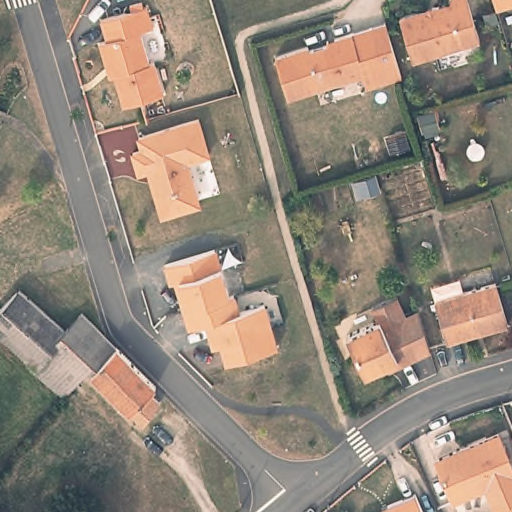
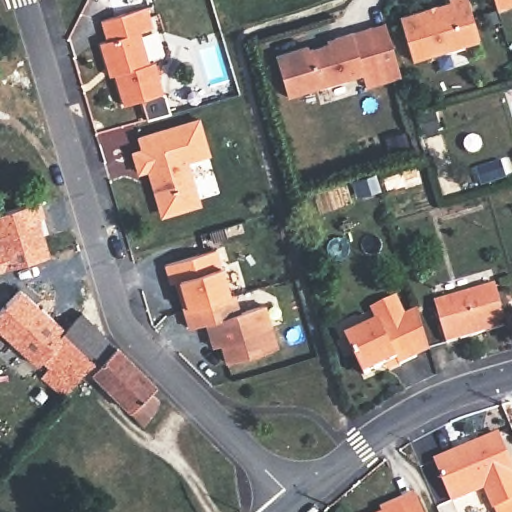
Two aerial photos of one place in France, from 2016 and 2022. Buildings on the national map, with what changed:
unchanged [(448,2),(448,0),(467,0),(477,37),(477,39),(450,47),(413,58),(411,57),(400,17),(448,2)]
unchanged [(495,11),(491,0),(512,0),(512,6),(495,11)]
unchanged [(102,39),(106,38),(100,21),(100,19),(145,6),(146,6),(152,24),(152,26),(140,30),(140,34),(149,61),(150,61),(154,60),(164,91),(163,92),(125,104),(111,63),(107,65),(100,40),(102,39)]
unchanged [(277,54),(309,45),(310,48),(336,40),(335,37),(371,26),(388,80),(367,87),(363,74),(291,95),(290,95),(277,57),(277,54)]
unchanged [(145,154),(141,141),(201,124),(202,126),(213,159),(190,165),(192,172),(201,205),(197,211),(170,219),(169,218),(164,216),(151,175),(144,177),(138,156),(145,154)]
new [(55,238),(48,240),(51,255),(0,271),(0,213),(43,200),(55,238)]
unchanged [(176,281),(170,282),(165,263),(216,249),(220,266),(229,296),(184,309),(176,281)]
unchanged [(494,282),(506,324),(447,342),(435,300),(494,282)]
unchanged [(146,423),(149,425),(131,446),(119,434),(135,417),(135,416),(90,369),(65,396),(34,367),(36,365),(36,363),(30,358),(23,366),(12,356),(20,348),(0,329),(0,310),(20,288),(22,287),(67,330),(76,322),(85,312),(95,323),(110,336),(150,379),(167,396),(146,423)]
unchanged [(229,296),(235,294),(240,313),(265,305),(276,344),(276,346),(226,360),(220,337),(212,340),(206,323),(190,328),(184,309),(229,296)]
unchanged [(399,363),(396,358),(365,373),(364,371),(348,336),(380,320),(374,307),(396,295),(406,315),(420,308),(431,348),(418,355),(400,363),(399,363)]
new [(0,334),(0,329),(2,331),(0,334)]
unchanged [(495,512),(491,504),(482,482),(453,494),(451,494),(436,457),(437,455),(495,431),(496,431),(512,471),(512,512),(495,512)]
unchanged [(413,496),(415,496),(421,512),(389,512),(387,507),(413,496)]

